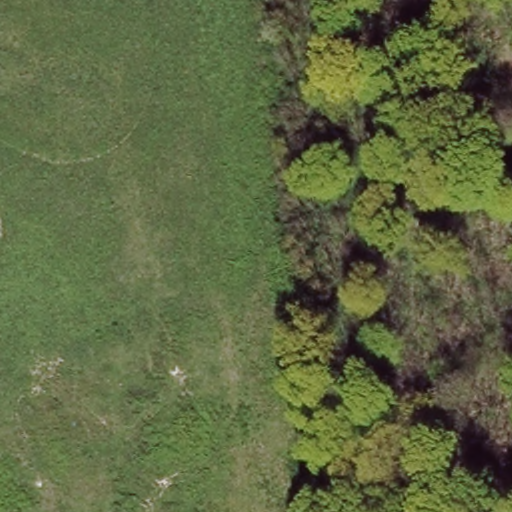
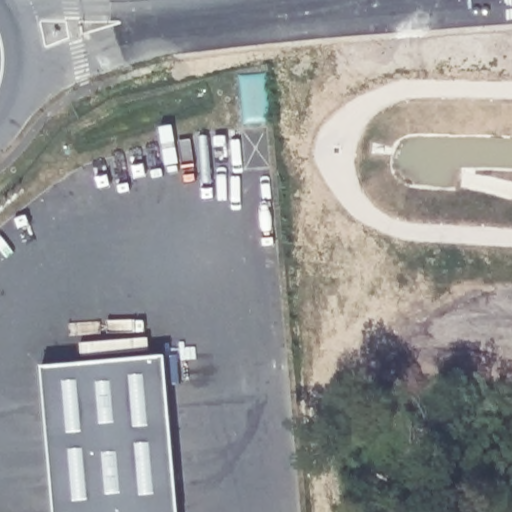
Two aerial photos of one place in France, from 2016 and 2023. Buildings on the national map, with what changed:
new [(162,355),(177,512),(56,512),(42,367),(162,355)]

